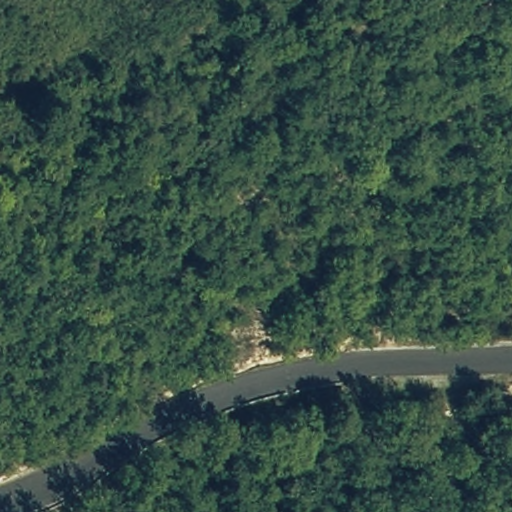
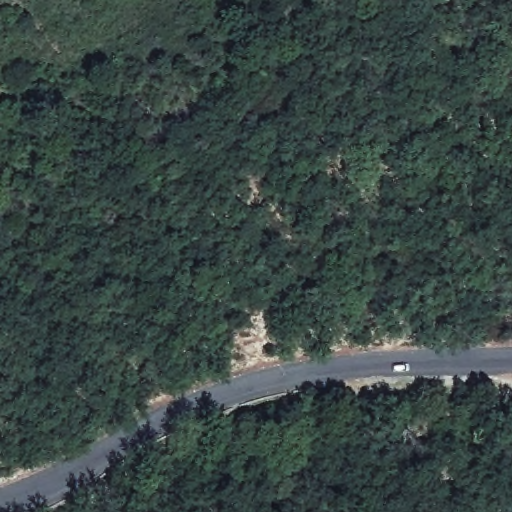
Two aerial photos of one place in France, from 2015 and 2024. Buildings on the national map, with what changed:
[]

